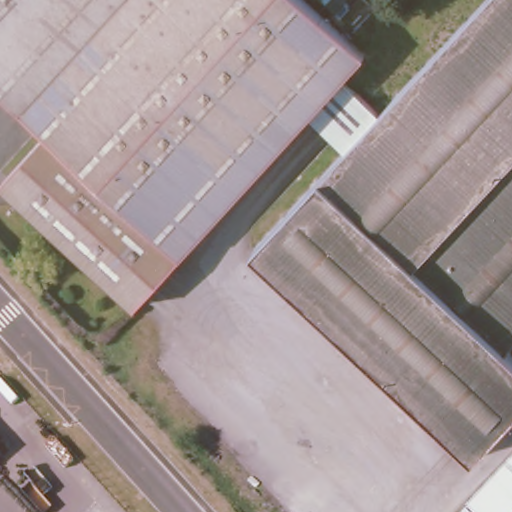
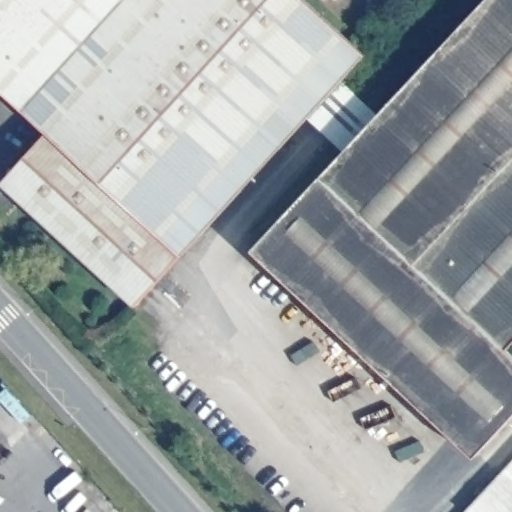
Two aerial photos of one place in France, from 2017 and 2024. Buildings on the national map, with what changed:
unchanged [(0,88),(0,0),(306,0),(362,52),(339,78),(305,115),(140,295),(132,305),(0,182),(0,176),(17,158),(44,129),(0,88)]
unchanged [(375,112),(480,0),(512,0),(512,337),(507,343),(512,348),(512,410),(472,452),(253,245),(342,150),(375,112)]
unchanged [(375,112),(342,150),(305,115),(339,78),(375,112)]
unchanged [(512,456),(512,512),(468,512),(464,508),(512,456)]

